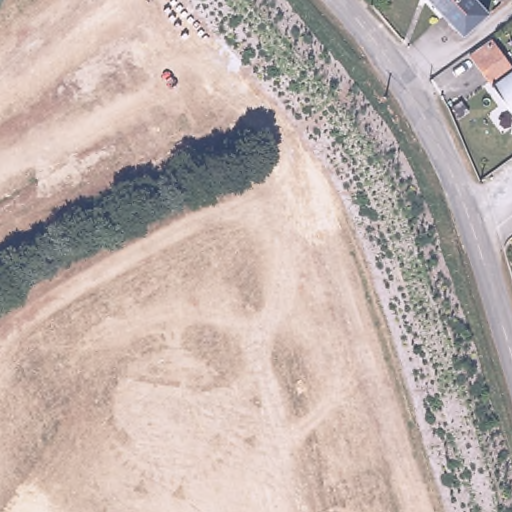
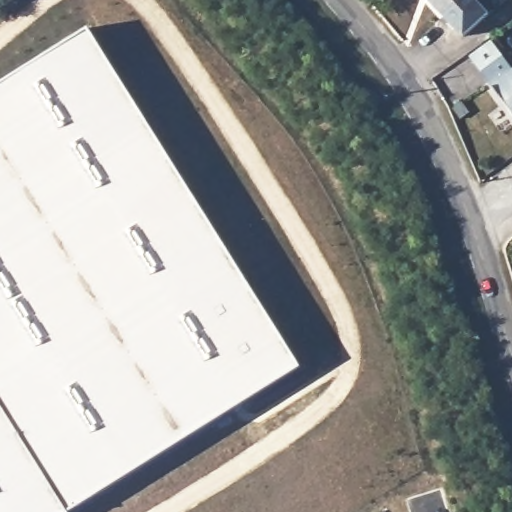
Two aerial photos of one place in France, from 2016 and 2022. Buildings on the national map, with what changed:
unchanged [(487,17),(462,41),(444,22),(424,0),(471,0),(487,17)]
new [(0,512),(0,84),(88,29),(300,367),(69,512),(0,512)]
unchanged [(464,60),(486,44),(492,51),(499,45),(512,61),(512,124),(464,60)]

